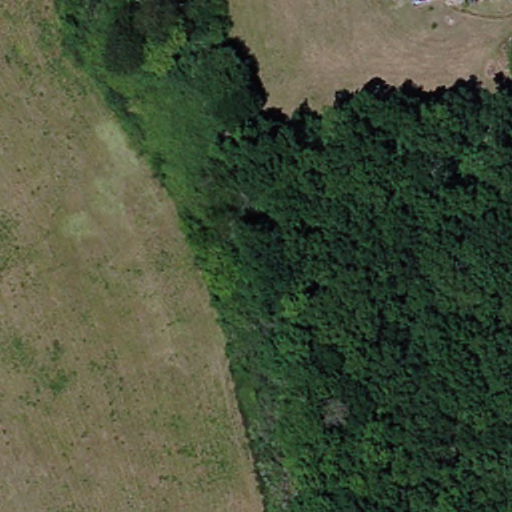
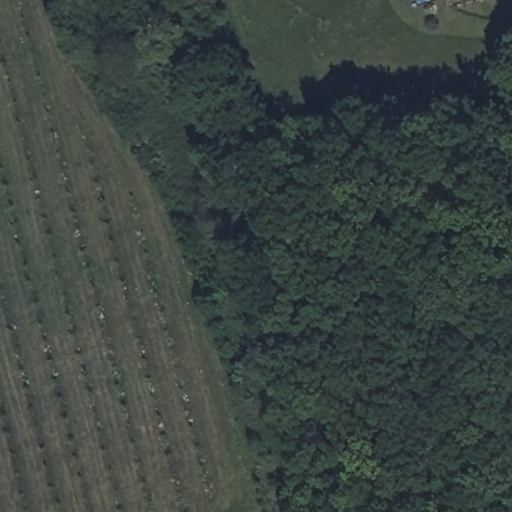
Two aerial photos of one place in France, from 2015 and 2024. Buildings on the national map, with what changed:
[]

